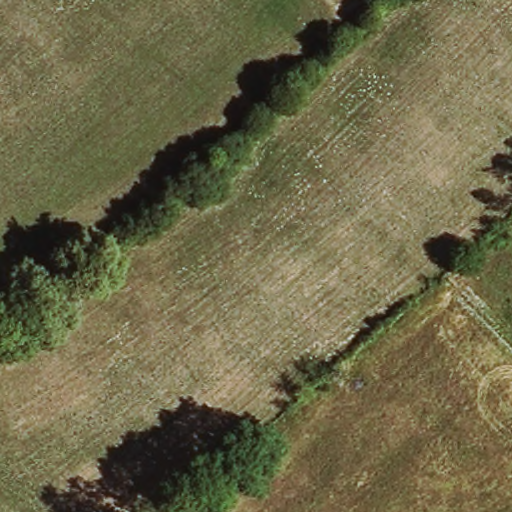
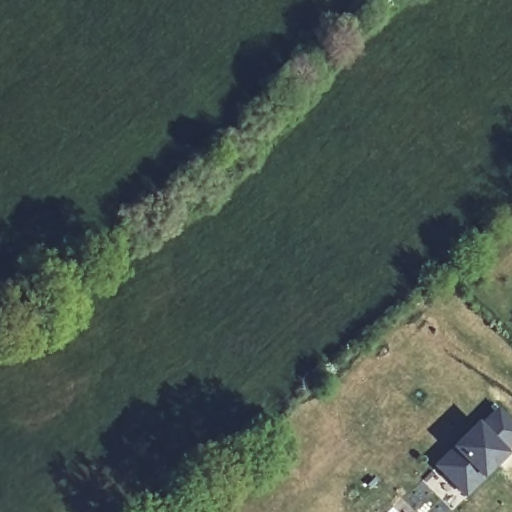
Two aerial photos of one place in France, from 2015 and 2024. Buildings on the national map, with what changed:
new [(509,457),(482,482),(466,500),(434,469),(451,449),(477,423),(483,428),(499,409),(512,422),(512,449),(507,454),(509,457)]

